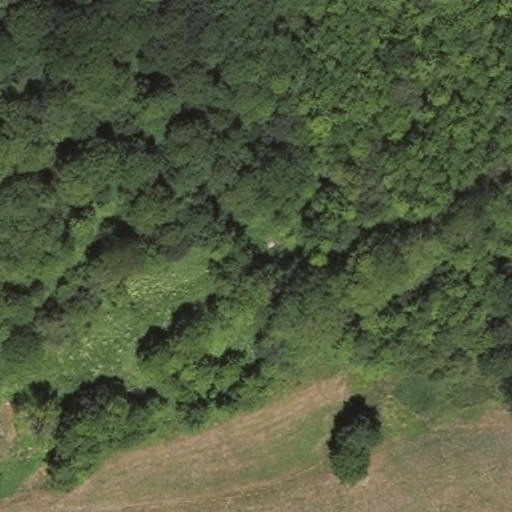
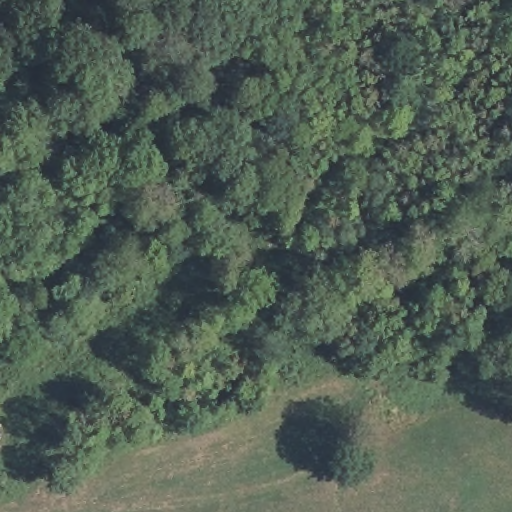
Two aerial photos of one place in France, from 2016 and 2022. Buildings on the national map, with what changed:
unchanged [(0,439),(0,422),(7,436),(0,439)]

